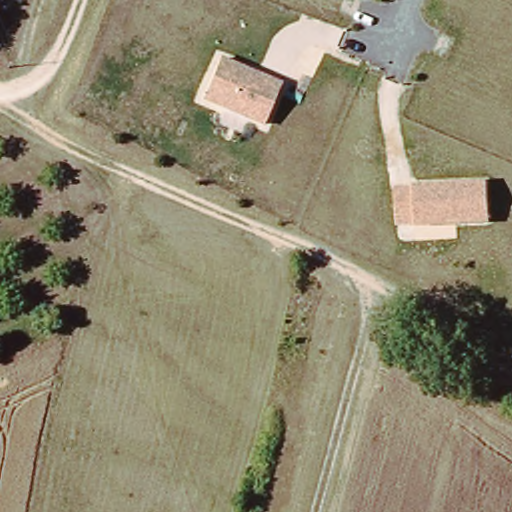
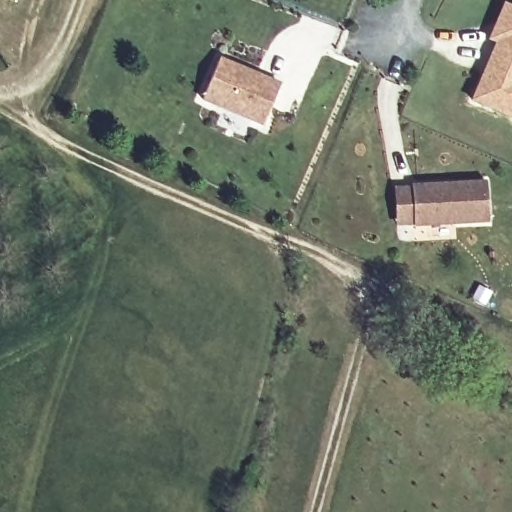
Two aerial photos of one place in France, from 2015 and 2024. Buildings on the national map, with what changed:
new [(494,43),(487,40),(503,2),(512,6),(512,119),(470,101),(494,43)]
unchanged [(202,99),(219,56),(282,81),(263,126),(202,99)]
unchanged [(395,227),(394,184),(486,177),(489,221),(395,227)]

